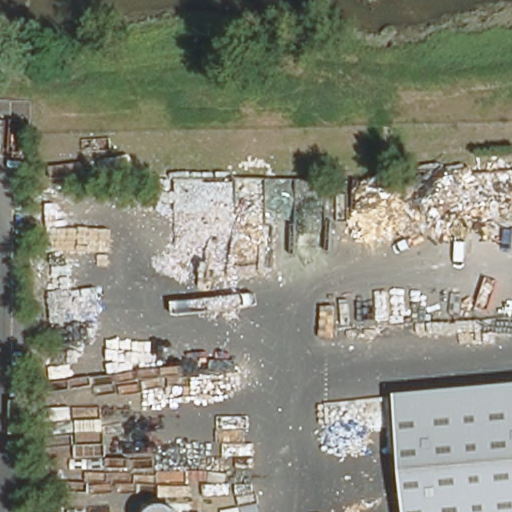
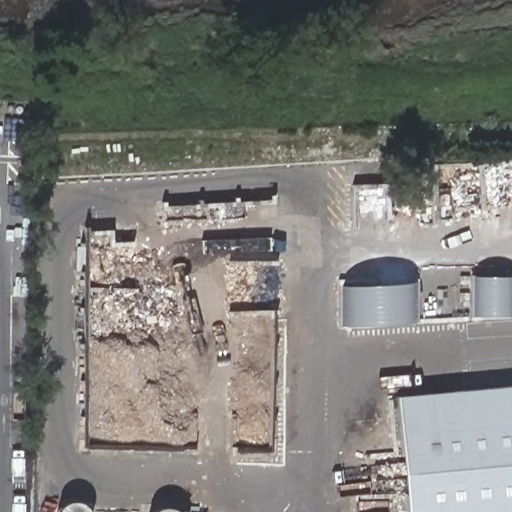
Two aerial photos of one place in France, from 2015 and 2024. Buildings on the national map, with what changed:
new [(512,274),(512,315),(472,316),(472,275),(512,274)]
new [(415,279),(416,321),(341,325),(340,285),(415,279)]
unchanged [(396,396),(512,385),(512,512),(408,512),(396,396)]

